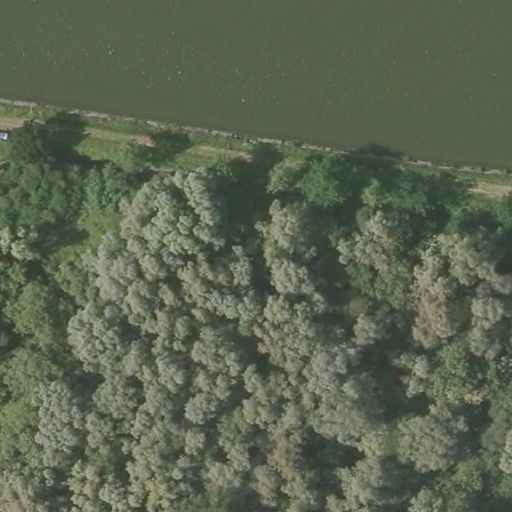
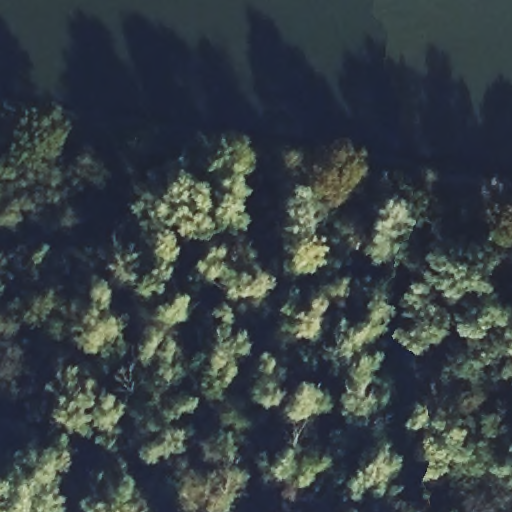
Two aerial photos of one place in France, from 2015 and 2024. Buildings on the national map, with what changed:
[]

